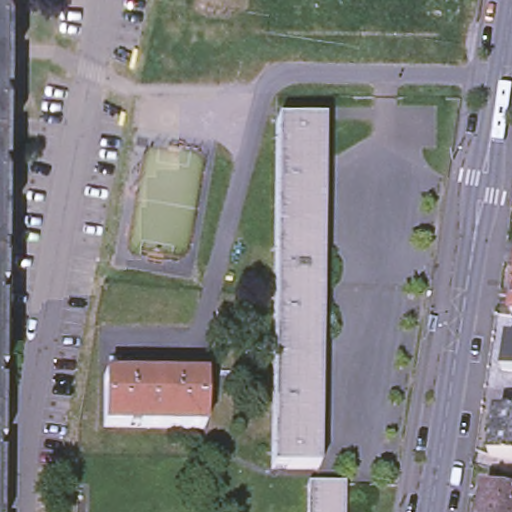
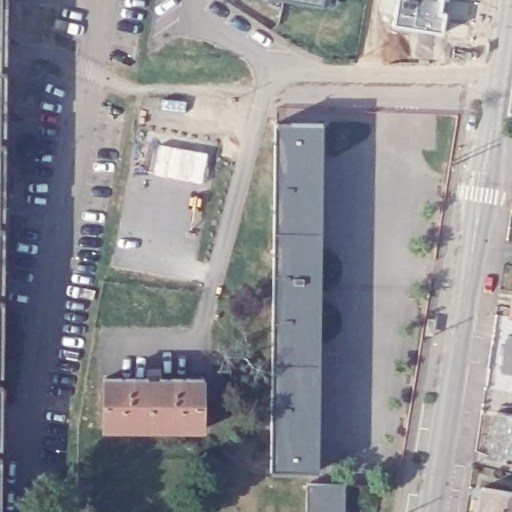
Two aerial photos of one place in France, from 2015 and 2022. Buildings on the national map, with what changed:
unchanged [(0,258),(0,0),(3,0),(1,258),(0,258)]
new [(323,4),(299,0),(335,0),(334,6),(323,4)]
new [(443,1),(441,16),(445,16),(444,37),(394,29),(398,0),(437,0),(437,1),(443,1)]
unchanged [(326,125),(322,469),(276,469),(280,124),(326,125)]
unchanged [(1,258),(0,364),(0,258),(1,258)]
unchanged [(508,334),(512,335),(512,371),(503,369),(508,334)]
unchanged [(104,380),(204,380),(204,430),(104,429),(104,380)]
unchanged [(501,409),(512,411),(512,457),(495,454),(501,409)]
unchanged [(347,485),(346,512),(311,512),(311,485),(347,485)]
unchanged [(483,487),(512,491),(512,512),(479,512),(483,487)]

